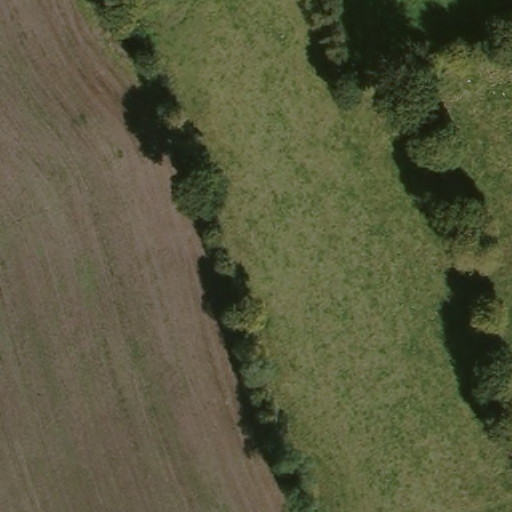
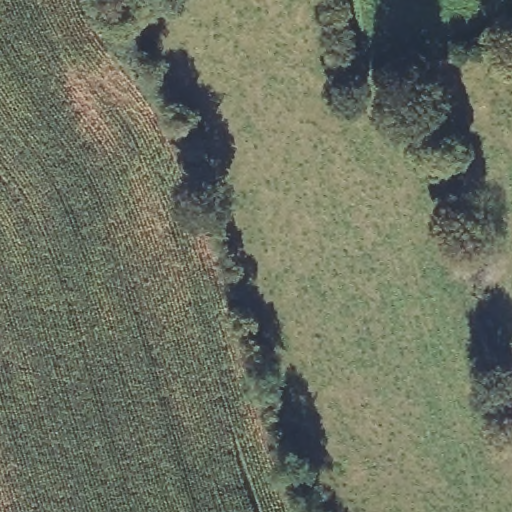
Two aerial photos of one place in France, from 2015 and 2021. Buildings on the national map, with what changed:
[]

